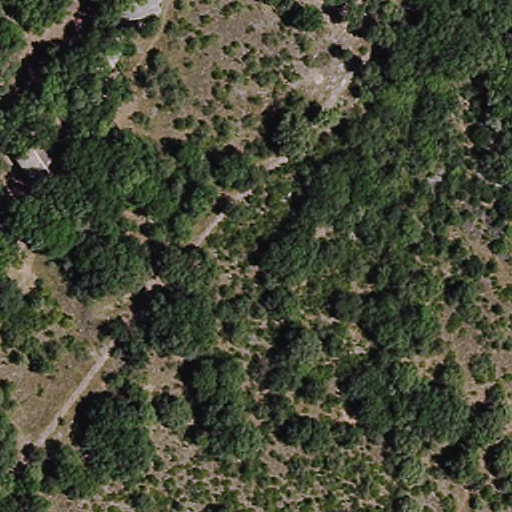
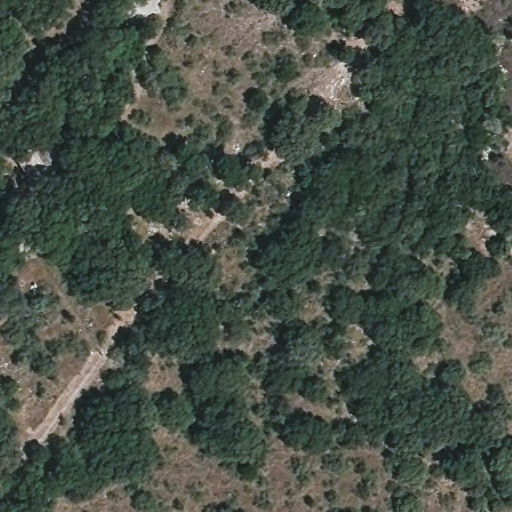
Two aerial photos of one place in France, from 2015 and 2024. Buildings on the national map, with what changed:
unchanged [(33,182),(20,160),(53,138),(67,163),(33,182)]

